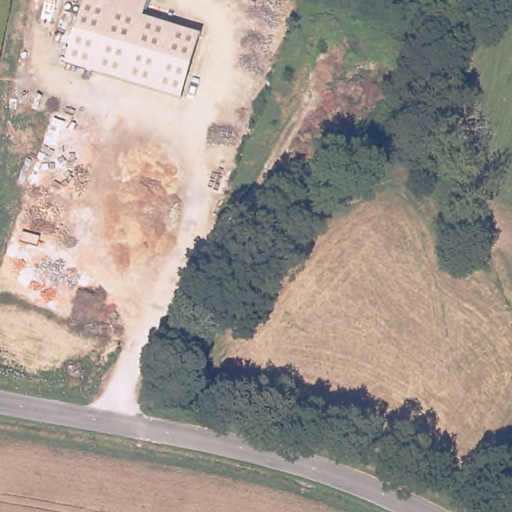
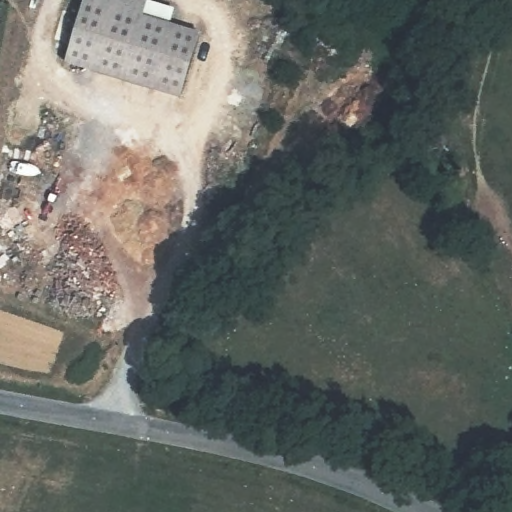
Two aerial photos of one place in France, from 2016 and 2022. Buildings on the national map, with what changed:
unchanged [(180,100),(65,66),(82,2),(83,0),(148,0),(142,19),(199,35),(180,100)]

